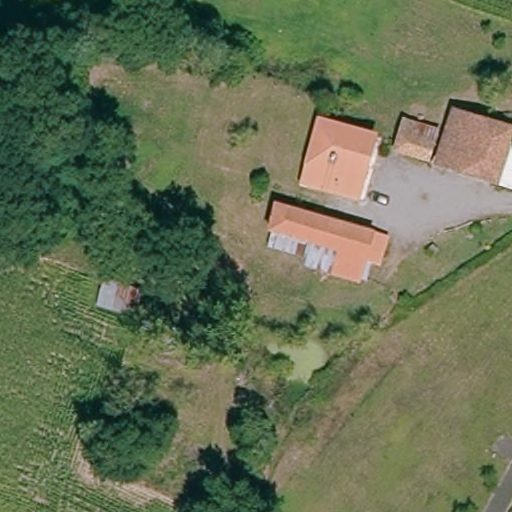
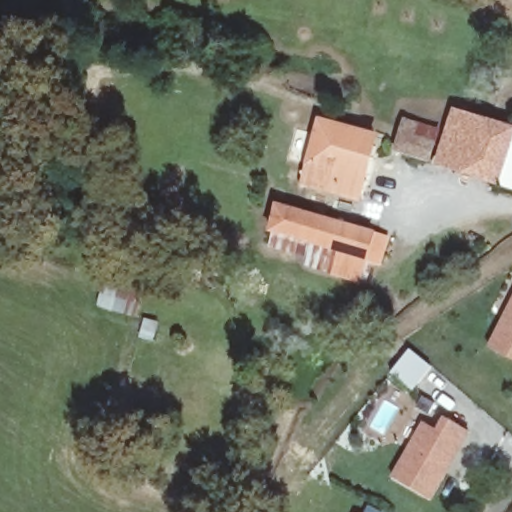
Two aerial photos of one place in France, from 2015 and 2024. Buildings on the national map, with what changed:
unchanged [(502,183),(443,167),(450,137),(456,119),(512,134),(512,150),(502,183)]
unchanged [(321,123),(374,141),(373,146),(356,200),(302,182),(321,123)]
unchanged [(441,135),(431,167),(396,156),(407,126),(441,135)]
unchanged [(502,183),(512,150),(512,186),(502,183)]
unchanged [(311,242),(274,230),(281,207),(387,244),(380,266),(364,261),(359,279),(330,269),(304,261),(311,242)]
new [(489,343),(512,299),(512,356),(489,343)]
new [(431,498),(392,475),(424,422),(435,428),(444,415),(470,432),(431,498)]

